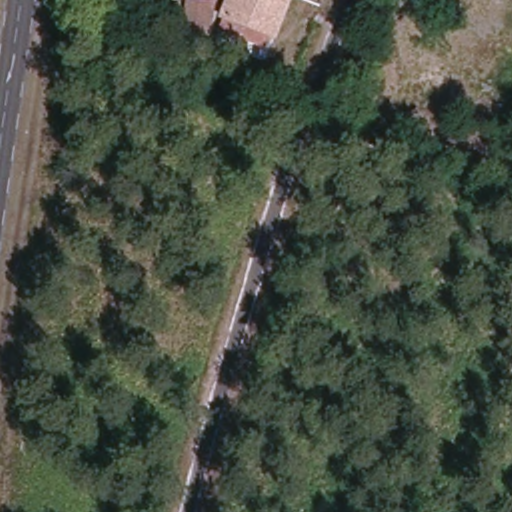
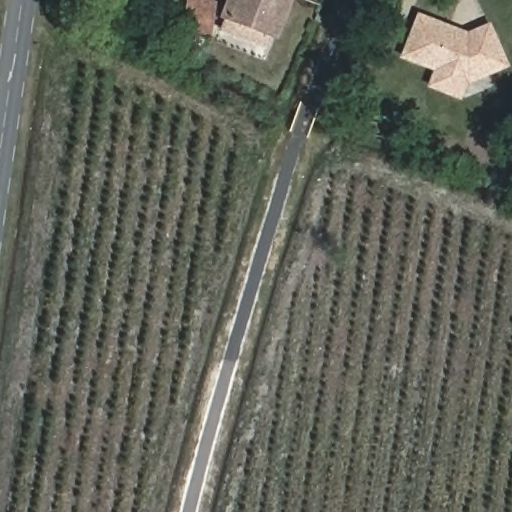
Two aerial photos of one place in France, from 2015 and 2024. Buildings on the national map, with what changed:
unchanged [(211,30),(186,26),(189,0),(215,0),(211,30)]
unchanged [(267,47),(224,31),(236,0),(287,0),(267,47)]
new [(467,33),(490,23),(510,67),(467,86),(462,101),(427,87),(433,71),(400,58),(417,13),(467,33)]

